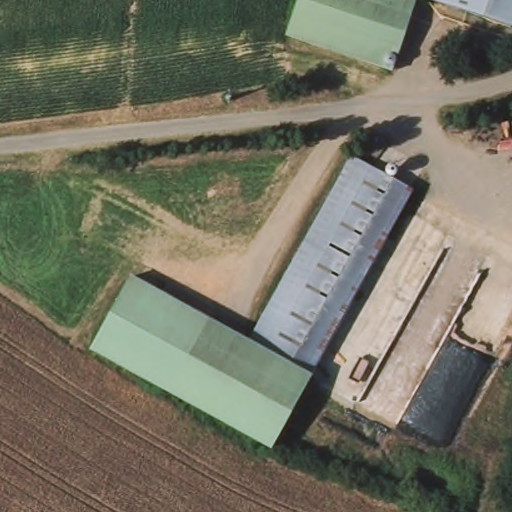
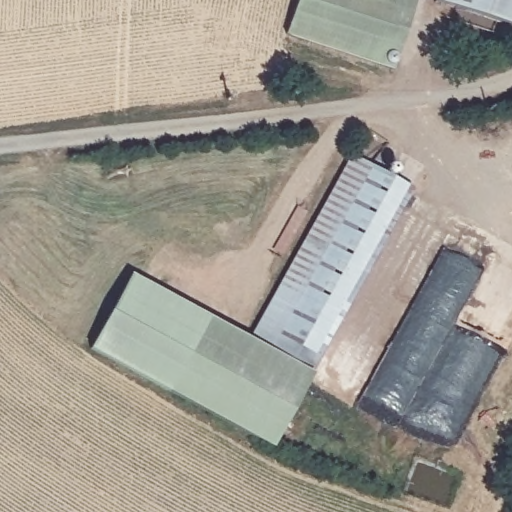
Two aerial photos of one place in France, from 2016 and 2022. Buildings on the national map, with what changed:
unchanged [(389,72),(282,38),(294,0),(413,0),(389,72)]
unchanged [(512,31),(423,0),(512,0),(512,31)]
unchanged [(269,455),(86,354),(126,279),(244,344),(347,159),(367,170),(374,157),(393,167),(386,184),(407,197),(269,455)]

